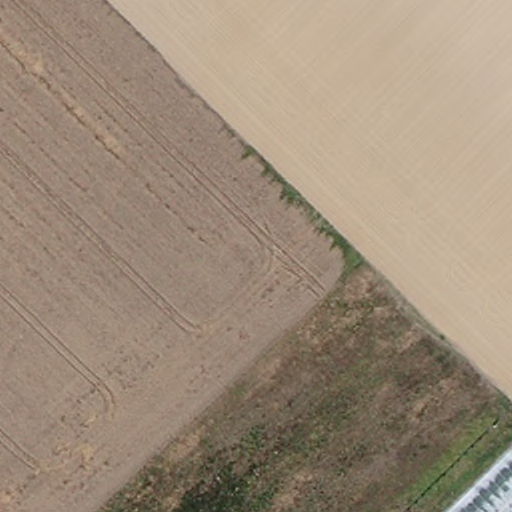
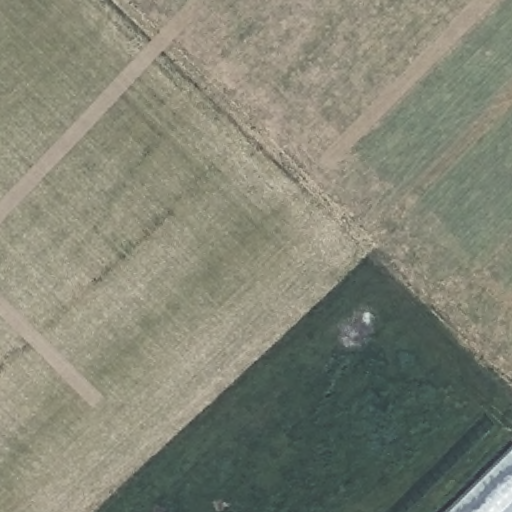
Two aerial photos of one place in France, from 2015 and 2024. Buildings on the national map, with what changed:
unchanged [(509,445),(512,448),(512,512),(440,512),(509,445)]

